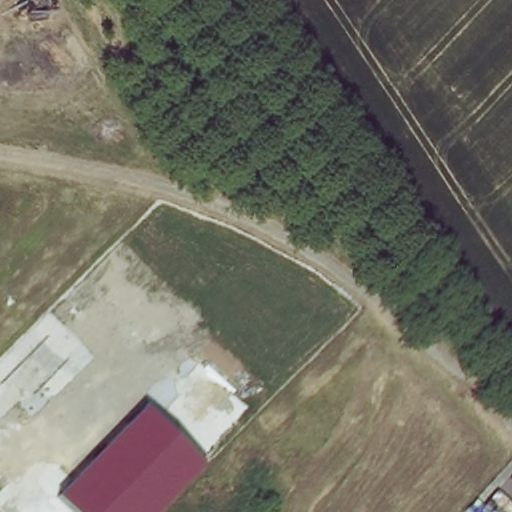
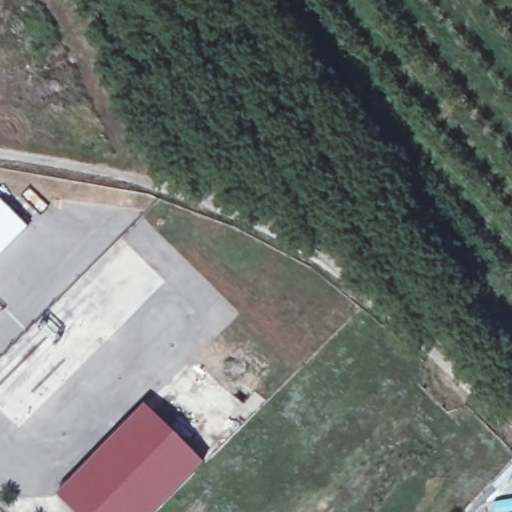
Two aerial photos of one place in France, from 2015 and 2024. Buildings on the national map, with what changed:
new [(0,255),(0,202),(27,229),(0,255)]
unchanged [(144,407),(205,467),(159,512),(75,512),(59,495),(144,407)]

